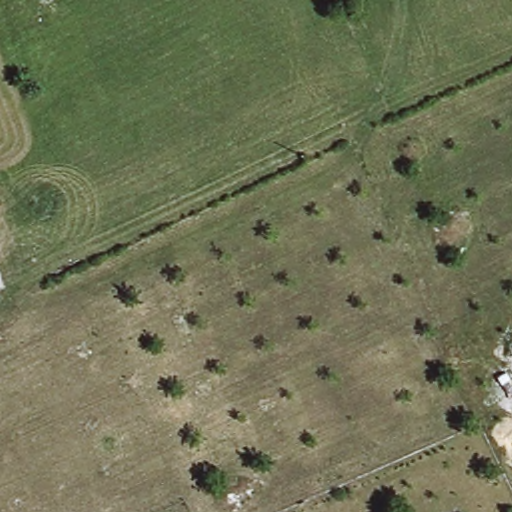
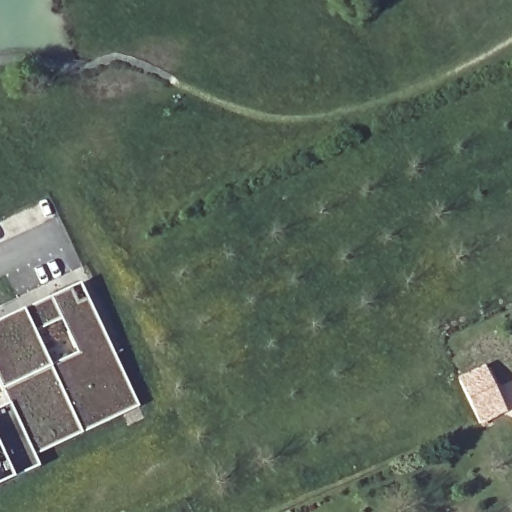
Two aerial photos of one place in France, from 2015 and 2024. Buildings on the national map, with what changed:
new [(139,406),(34,455),(0,386),(0,323),(82,282),(139,406)]
new [(34,455),(43,469),(0,488),(0,411),(10,406),(34,455)]

